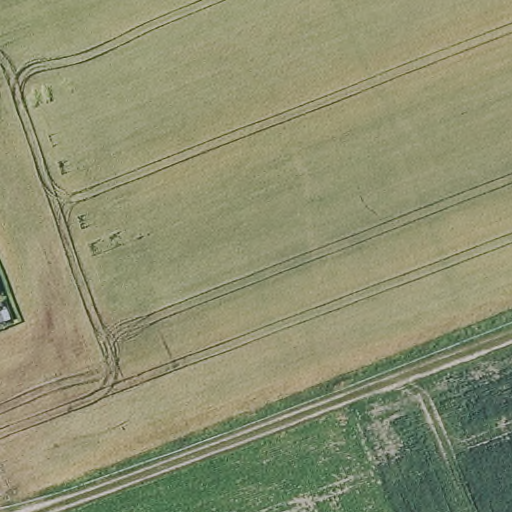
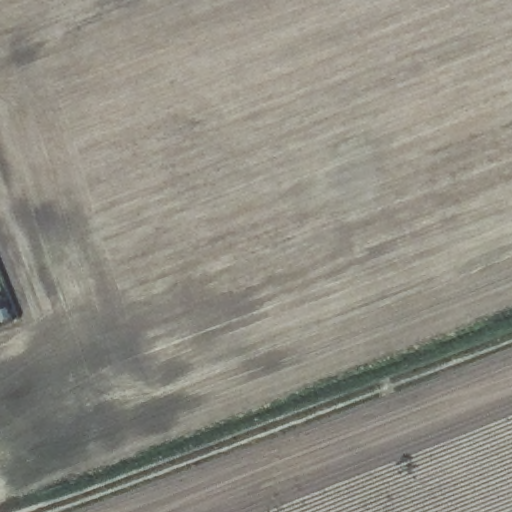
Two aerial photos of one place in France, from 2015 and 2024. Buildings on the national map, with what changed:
[]

